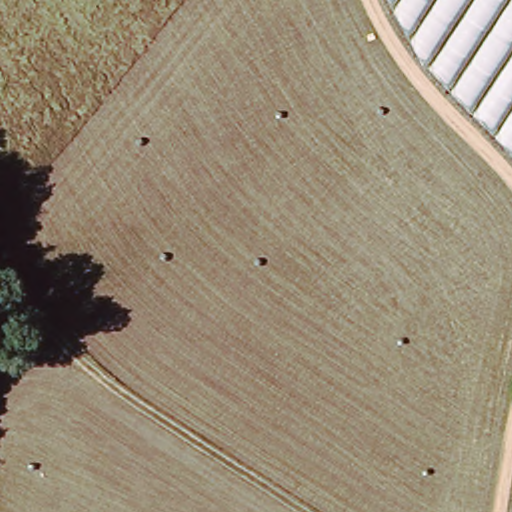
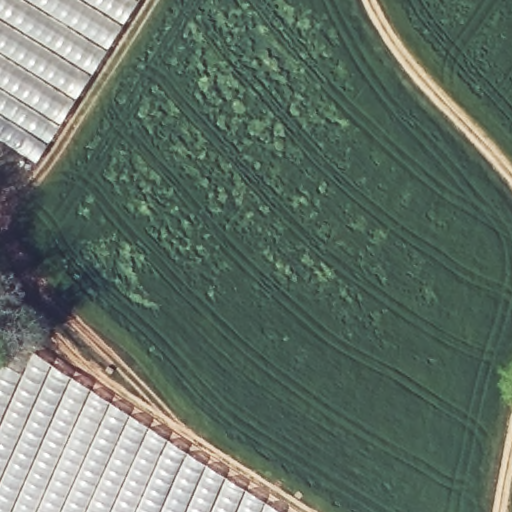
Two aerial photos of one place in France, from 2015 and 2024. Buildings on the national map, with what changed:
new [(48,144),(0,115),(0,0),(140,0),(48,144)]
unchanged [(421,59),(389,0),(512,0),(512,154),(499,141),(421,59)]
new [(48,144),(35,163),(0,141),(0,115),(48,144)]
new [(32,353),(123,411),(230,481),(278,512),(0,512),(0,420),(20,373),(32,353)]
new [(3,365),(20,373),(0,420),(0,370),(3,365)]

